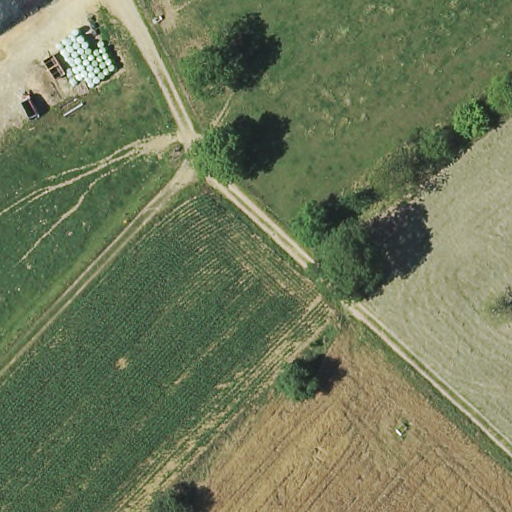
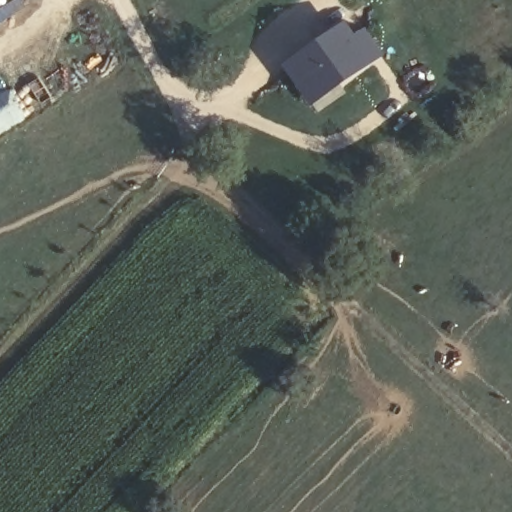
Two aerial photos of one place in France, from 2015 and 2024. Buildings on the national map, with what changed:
new [(343,23),(352,36),(364,29),(381,54),(310,106),(282,66),(343,23)]

